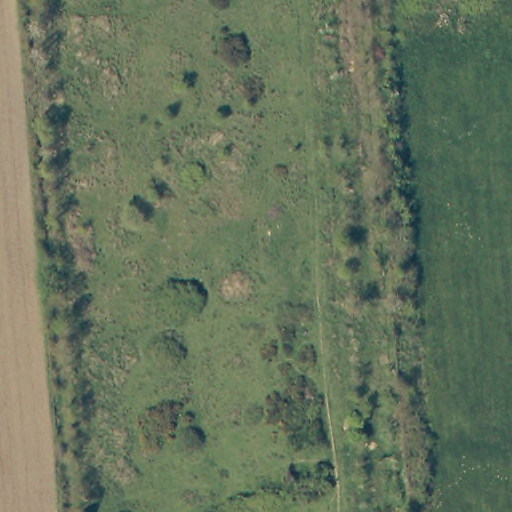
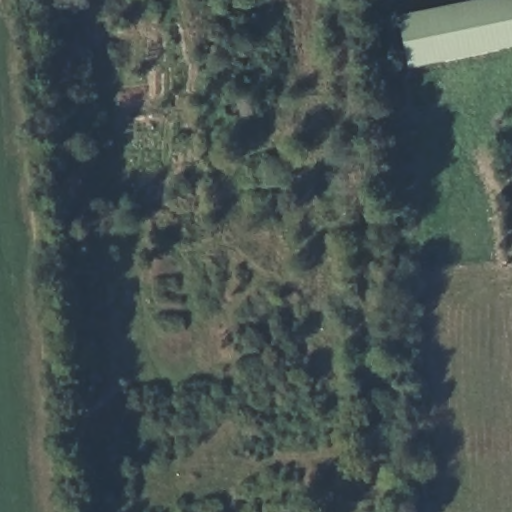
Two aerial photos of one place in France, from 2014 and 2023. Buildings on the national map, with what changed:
new [(410,69),(399,15),(473,0),(512,0),(512,49),(410,69)]

